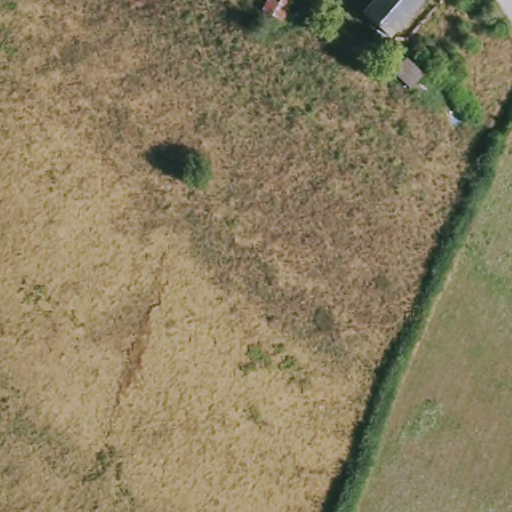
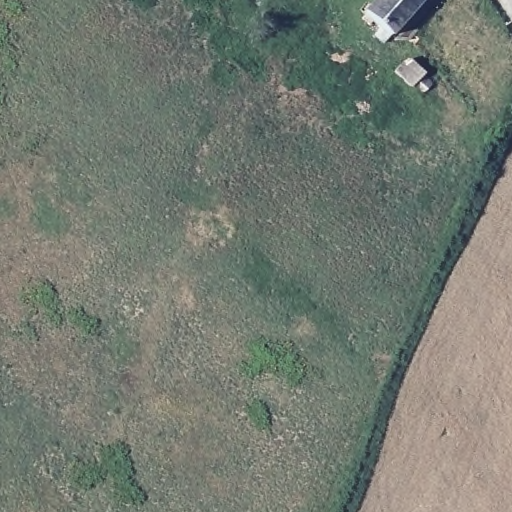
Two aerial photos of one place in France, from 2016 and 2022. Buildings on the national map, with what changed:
unchanged [(294,0),(300,0),(299,3),(294,0)]
unchanged [(369,10),(379,0),(427,0),(395,34),(369,10)]
unchanged [(411,60),(429,76),(419,89),(401,71),(411,60)]

